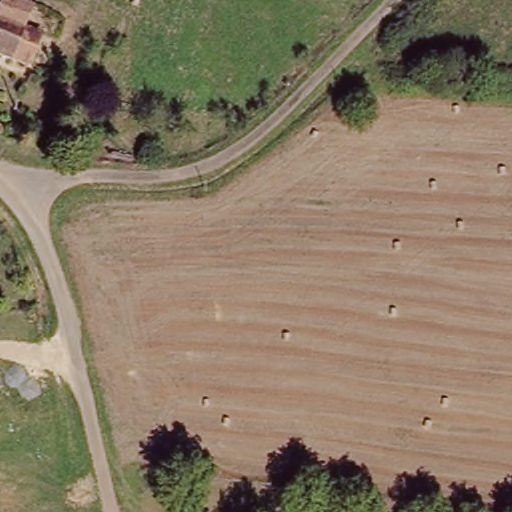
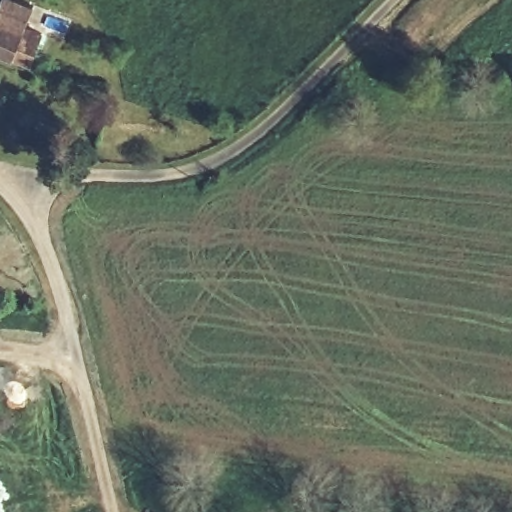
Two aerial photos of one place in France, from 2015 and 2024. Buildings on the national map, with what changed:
unchanged [(24,0),(34,4),(16,51),(0,45),(0,0),(24,0)]

